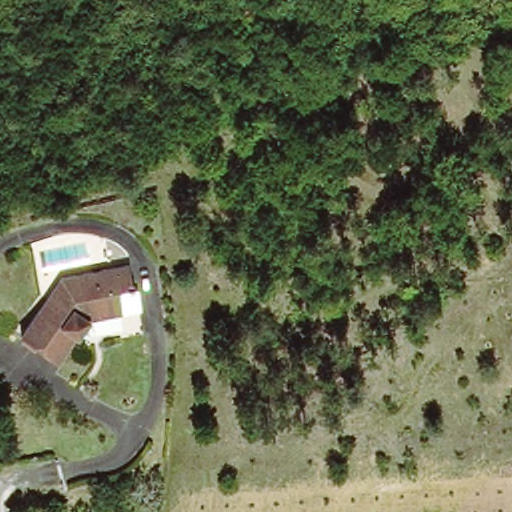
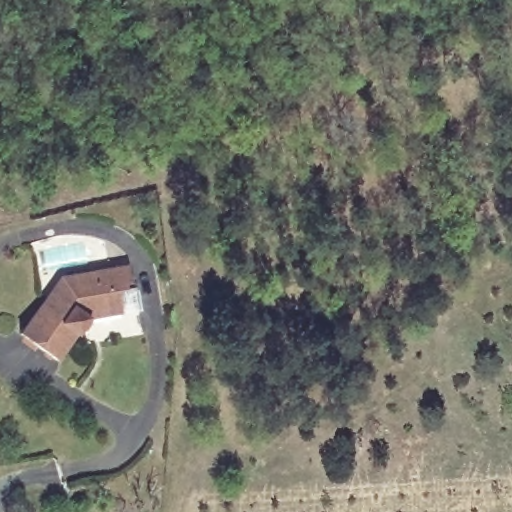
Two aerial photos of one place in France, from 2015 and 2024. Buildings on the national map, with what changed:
unchanged [(87,321),(47,351),(18,315),(71,275),(132,267),(138,314),(87,321)]

